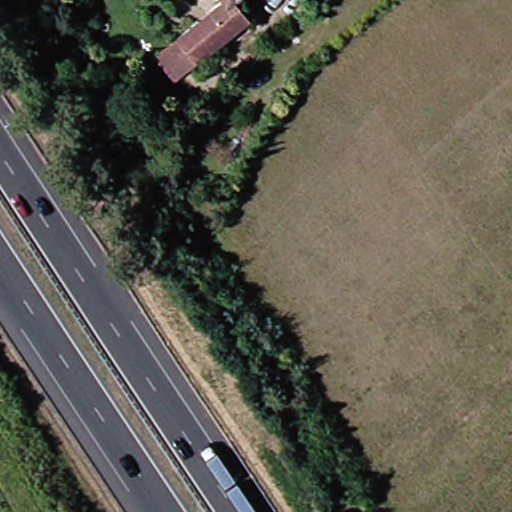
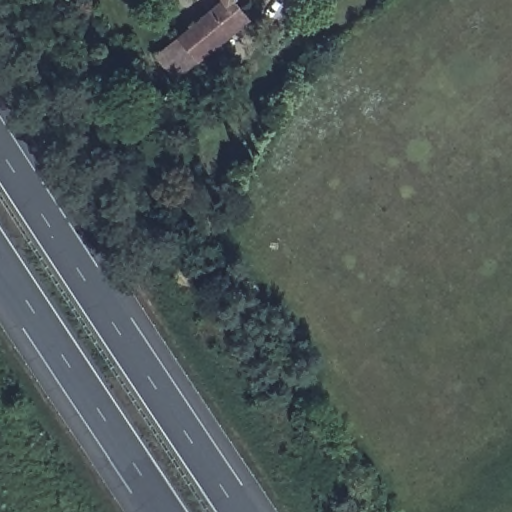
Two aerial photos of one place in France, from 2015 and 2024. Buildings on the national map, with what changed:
unchanged [(241,4),(253,19),(199,61),(175,32),(216,0),(246,0),(241,4)]

